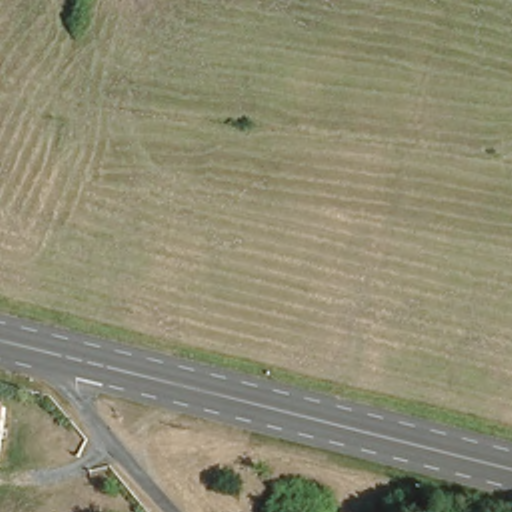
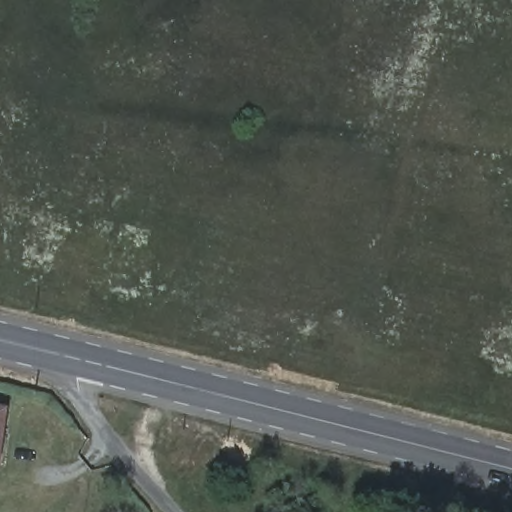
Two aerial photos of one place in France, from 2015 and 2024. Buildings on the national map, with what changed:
unchanged [(1,403),(0,427),(0,403),(1,403)]

